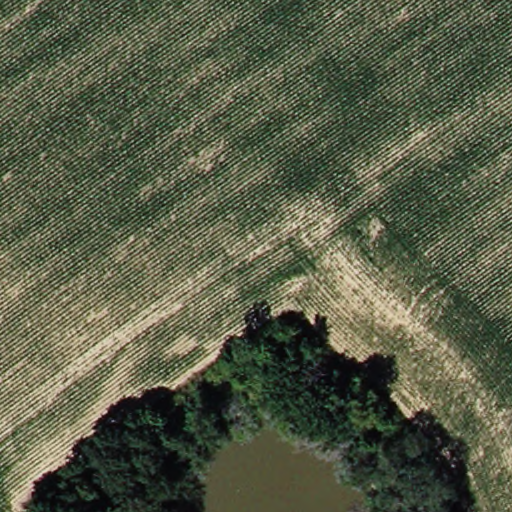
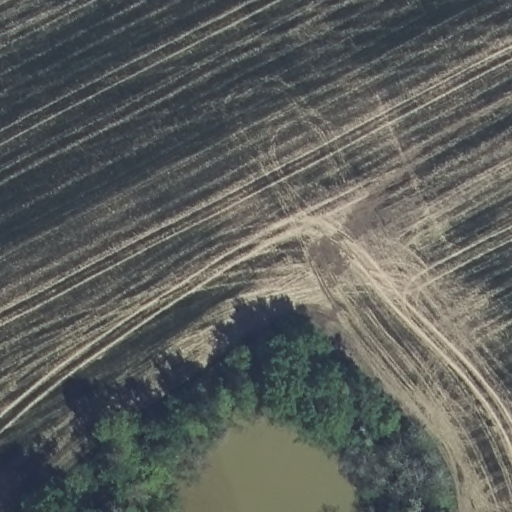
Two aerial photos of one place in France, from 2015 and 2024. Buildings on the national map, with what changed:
[]

